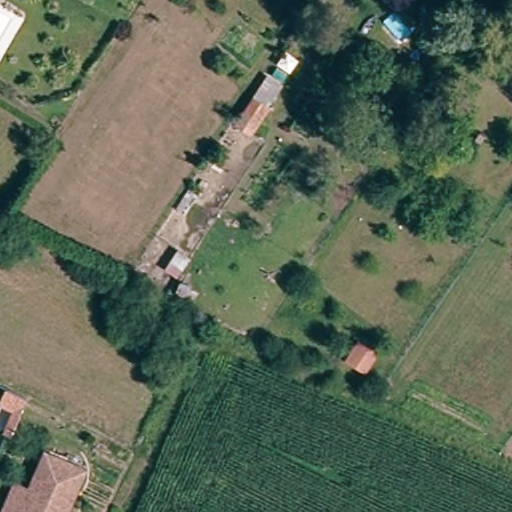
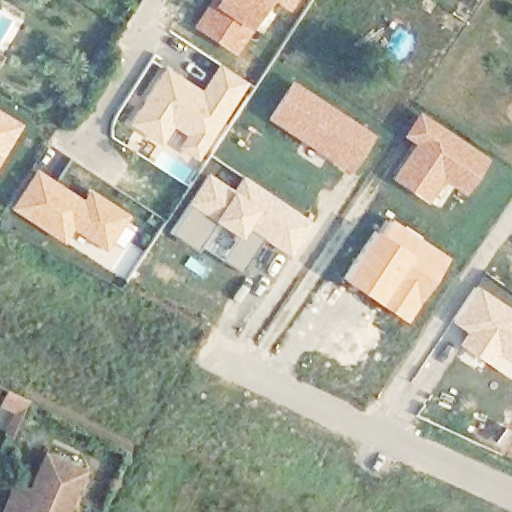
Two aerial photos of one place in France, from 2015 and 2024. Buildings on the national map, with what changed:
new [(211,0),(297,0),(288,12),(281,7),(261,34),(253,28),(234,54),(190,25),(211,0)]
new [(165,65),(199,88),(220,61),(249,81),(197,162),(126,121),(165,65)]
new [(292,78),(375,134),(346,173),(266,118),(292,78)]
unchanged [(252,97),(268,108),(250,135),(234,124),(252,97)]
new [(0,160),(0,108),(24,122),(0,160)]
new [(412,143),(400,134),(417,109),(490,157),(465,194),(443,182),(426,201),(392,178),(412,143)]
new [(35,167),(81,196),(89,186),(130,214),(106,252),(72,230),(62,244),(7,208),(35,167)]
new [(219,258),(202,247),(200,251),(168,231),(185,202),(205,170),(230,186),(241,172),(311,219),(289,256),(261,238),(240,270),(219,258)]
new [(410,253),(376,227),(386,214),(448,257),(405,321),(376,301),(410,253)]
new [(375,226),(376,228),(376,227),(410,253),(376,301),(340,276),(375,226)]
new [(130,242),(142,250),(125,279),(111,270),(130,242)]
new [(476,284),(512,308),(512,373),(509,377),(457,341),(464,331),(450,320),(476,284)]
unchanged [(378,353),(365,375),(344,362),(356,340),(378,353)]
unchanged [(1,424),(0,423),(0,410),(6,412),(1,424)]
unchanged [(6,512),(0,509),(0,506),(12,476),(26,482),(41,445),(80,461),(63,503),(70,506),(67,512),(6,512)]

